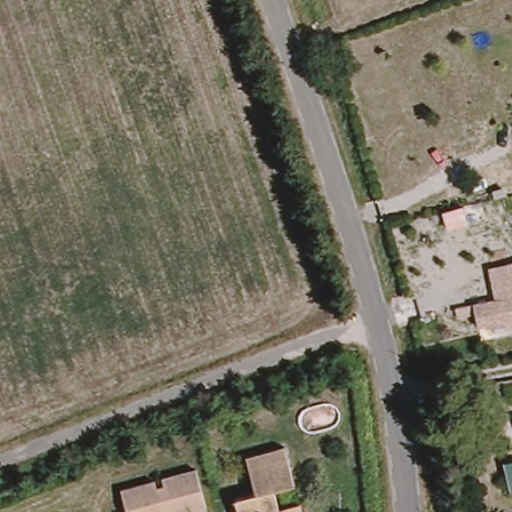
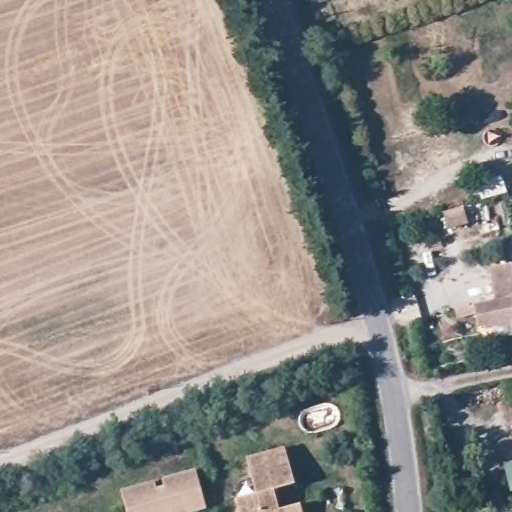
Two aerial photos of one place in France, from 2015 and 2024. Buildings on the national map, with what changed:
unchanged [(475,308),(510,297),(507,268),(512,268),(512,321),(479,330),(475,308)]
unchanged [(230,502),(251,495),(242,455),(290,441),(299,484),(275,491),(279,505),(304,498),(307,512),(232,512),(230,502)]
unchanged [(200,470),(210,511),(205,512),(116,512),(113,497),(149,487),(151,493),(163,490),(161,482),(200,470)]

